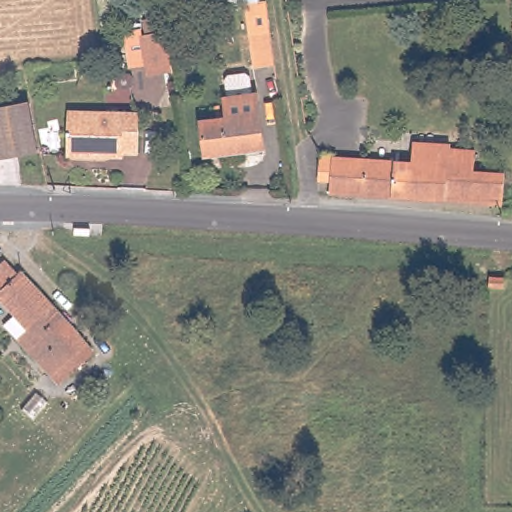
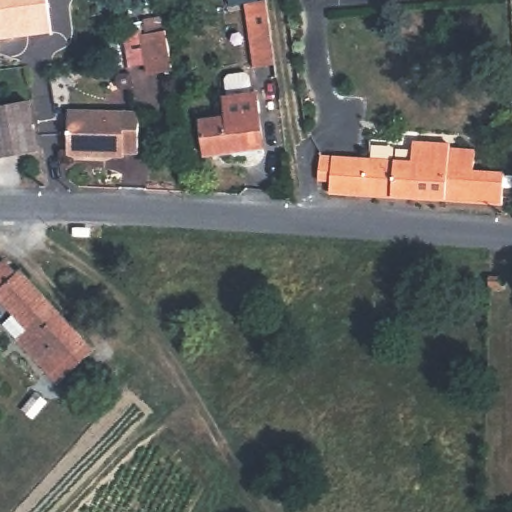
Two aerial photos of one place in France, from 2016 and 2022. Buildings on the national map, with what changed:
new [(50,32),(0,40),(0,0),(46,0),(50,32)]
unchanged [(230,3),(230,0),(254,0),(230,3)]
unchanged [(230,3),(254,0),(263,64),(240,67),(230,3)]
unchanged [(263,64),(254,0),(270,0),(278,61),(263,64)]
unchanged [(150,72),(142,32),(149,29),(146,17),(166,12),(175,66),(150,72)]
unchanged [(219,119),(215,100),(220,100),(217,83),(220,79),(237,76),(242,80),(244,96),(248,95),(251,114),(256,151),(200,159),(194,123),(219,119)]
unchanged [(29,101),(37,151),(0,158),(0,107),(29,101)]
unchanged [(104,152),(104,158),(69,156),(71,111),(115,113),(140,114),(139,153),(120,153),(104,152)]
unchanged [(324,167),(325,153),(418,158),(420,137),(455,139),(455,144),(480,146),(478,167),(509,169),(506,200),(333,188),(335,168),(324,167)]
unchanged [(21,339),(32,329),(0,296),(0,270),(11,259),(24,272),(60,309),(80,330),(98,351),(75,375),(66,366),(56,375),(49,368),(21,339)]
unchanged [(487,286),(488,273),(508,273),(508,287),(487,286)]

